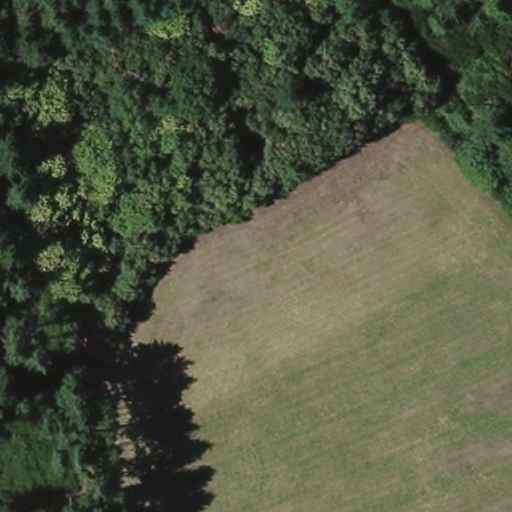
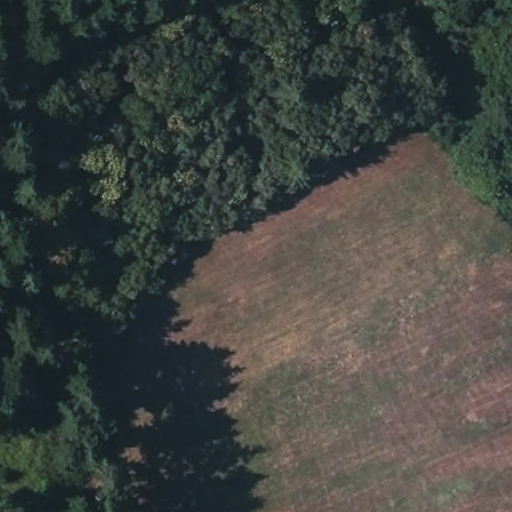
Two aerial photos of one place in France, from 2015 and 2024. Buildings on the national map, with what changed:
unchanged [(113,351),(93,358),(85,336),(105,328),(113,351)]

